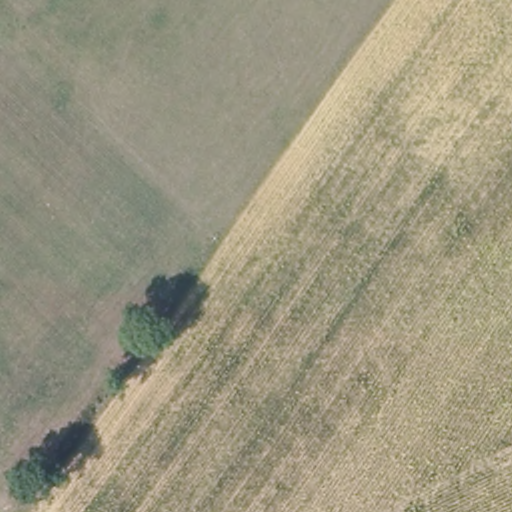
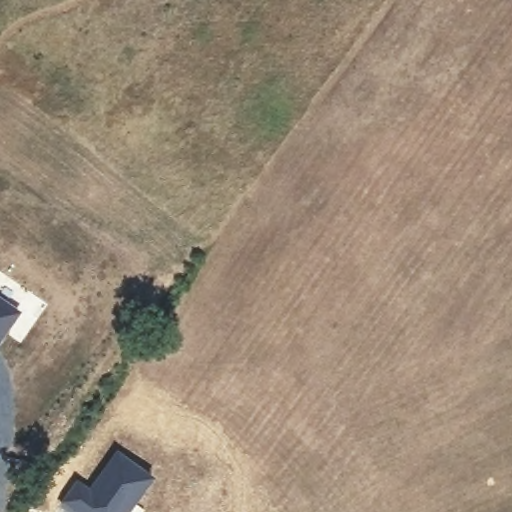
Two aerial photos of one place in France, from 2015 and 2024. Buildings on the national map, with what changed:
new [(0,344),(0,297),(22,312),(0,344)]
new [(77,477),(89,485),(117,447),(154,476),(130,512),(75,512),(60,502),(77,477)]

